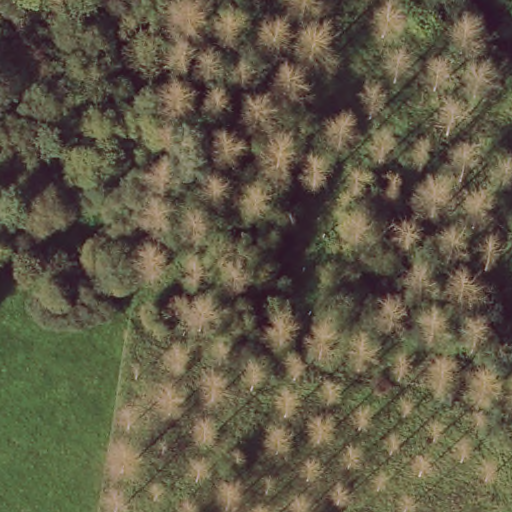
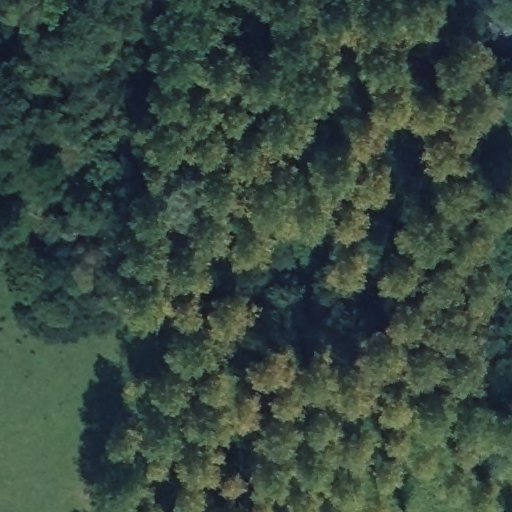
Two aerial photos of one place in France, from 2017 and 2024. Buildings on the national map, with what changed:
[]

